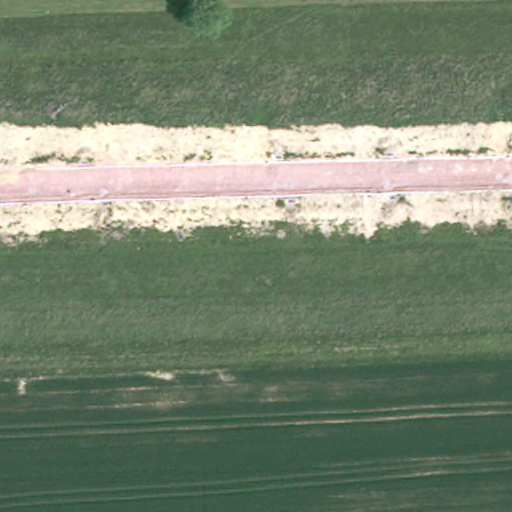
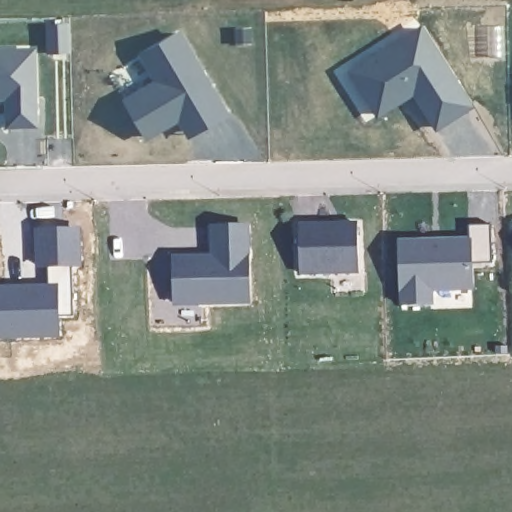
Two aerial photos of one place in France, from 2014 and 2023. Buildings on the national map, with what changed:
new [(371,110),(352,80),(345,67),(365,55),(415,24),(464,101),(430,123),(407,87),(395,95),(371,110)]
new [(67,25),(67,52),(49,53),(48,26),(67,25)]
new [(175,116),(181,112),(143,134),(121,98),(153,79),(138,52),(175,31),(221,111),(191,130),(185,134),(175,116)]
new [(0,100),(0,49),(36,47),(38,129),(5,130),(4,100),(0,100)]
new [(298,225),(356,222),(358,275),(300,277),(298,225)]
new [(468,240),(468,225),(491,225),(492,263),(471,265),(471,288),(430,289),(430,304),(400,305),(397,243),(468,240)]
new [(200,257),(200,262),(208,263),(208,261),(211,257),(213,257),(212,227),(246,226),(248,301),(175,303),(174,258),(200,257)]
new [(48,285),(48,263),(41,265),(41,229),(78,228),(78,266),(74,266),(76,319),(0,321),(0,287),(48,285)]

